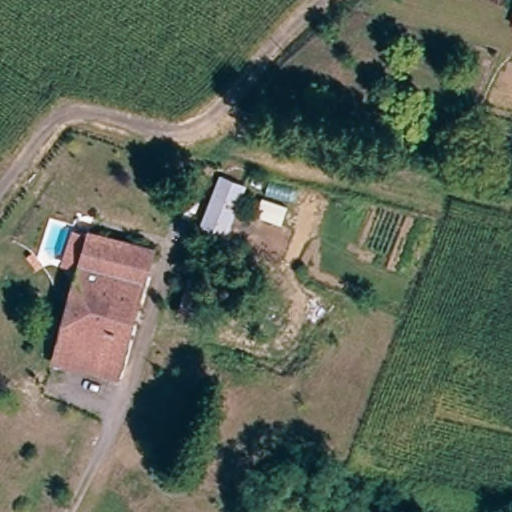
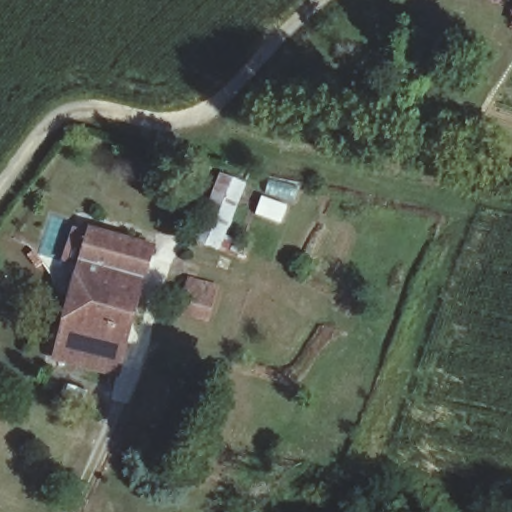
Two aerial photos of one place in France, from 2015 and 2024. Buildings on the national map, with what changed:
unchanged [(205,250),(224,180),(228,167),(249,171),(246,186),(227,255),(205,250)]
unchanged [(148,252),(114,377),(51,362),(86,236),(148,252)]
unchanged [(188,284),(206,289),(200,316),(180,312),(188,284)]

